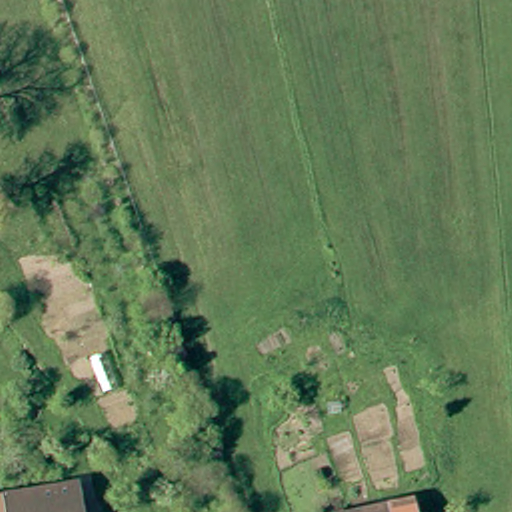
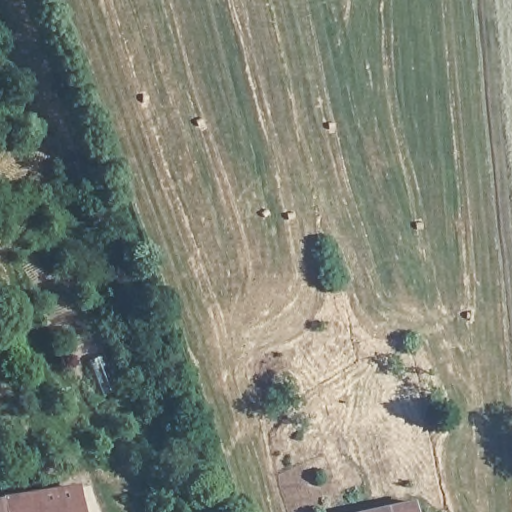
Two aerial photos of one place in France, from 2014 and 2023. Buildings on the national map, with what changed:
unchanged [(4,512),(2,497),(73,485),(78,512),(4,512)]
unchanged [(2,497),(4,512),(0,512),(0,498),(2,497)]
unchanged [(409,512),(394,512),(408,509),(409,512)]

